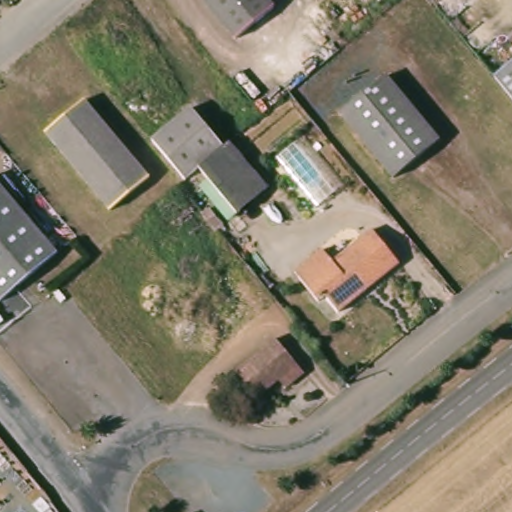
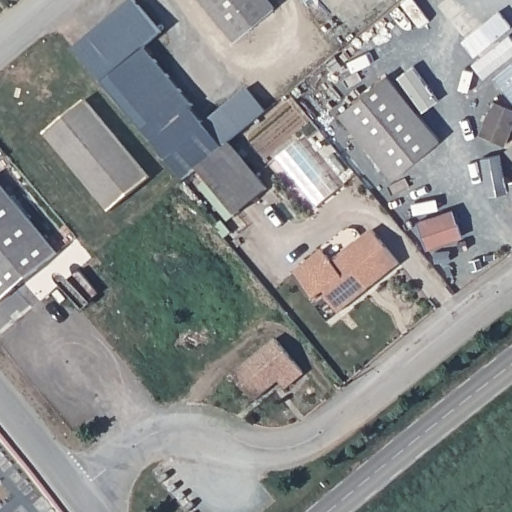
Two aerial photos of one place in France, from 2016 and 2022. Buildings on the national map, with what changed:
new [(134,0),(162,31),(146,46),(183,90),(139,126),(76,47),(132,0),(134,0)]
unchanged [(239,35),(210,0),(274,0),(276,3),(239,35)]
unchanged [(512,69),(512,95),(499,79),(512,69)]
unchanged [(389,74),(443,138),(396,178),(343,113),(389,74)]
new [(247,90),(265,113),(228,144),(225,140),(221,143),(204,123),(247,90)]
unchanged [(82,99),(147,175),(107,209),(42,133),(82,99)]
unchanged [(191,106),(221,143),(196,165),(185,174),(154,137),(191,106)]
unchanged [(225,140),(266,189),(235,214),(196,165),(221,143),(225,140)]
unchanged [(0,300),(0,185),(57,252),(0,300)]
unchanged [(335,256),(373,225),(401,260),(337,312),(325,297),(316,305),(291,274),(326,246),(335,256)]
unchanged [(254,399),(231,373),(272,337),(301,371),(285,386),(278,378),(269,386),(254,399)]

